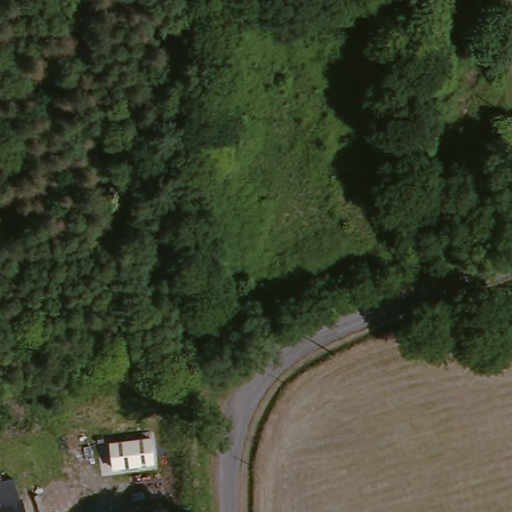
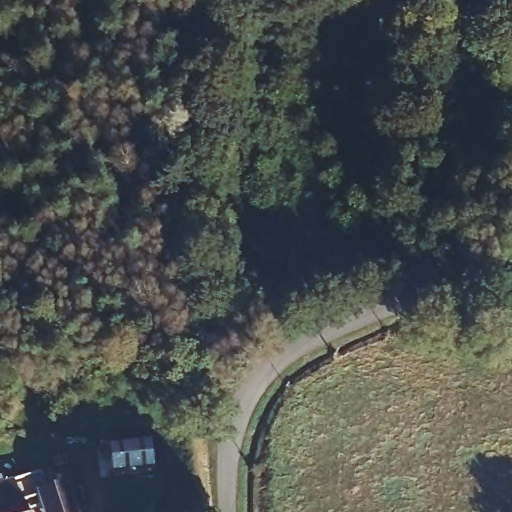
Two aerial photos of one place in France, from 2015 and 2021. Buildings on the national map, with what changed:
unchanged [(151,437),(154,466),(112,471),(108,442),(151,437)]
unchanged [(9,488),(15,505),(49,494),(55,512),(0,512),(0,492),(9,488)]

